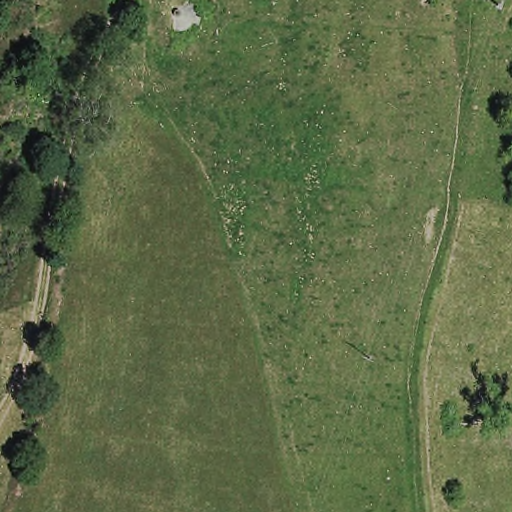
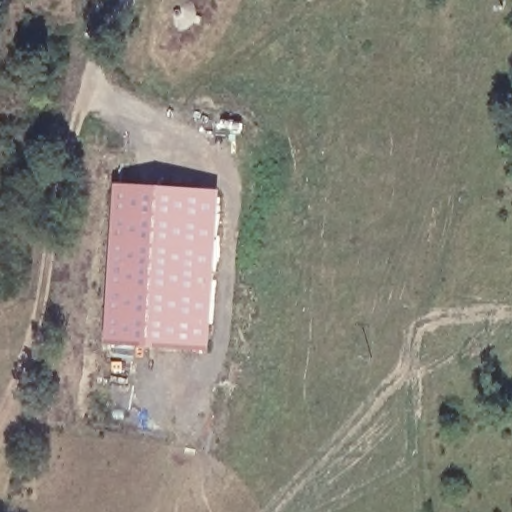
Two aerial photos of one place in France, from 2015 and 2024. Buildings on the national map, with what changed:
new [(195,24),(189,30),(180,31),(171,29),(165,23),(163,14),(166,5),(171,0),(190,0),(195,6),(198,15),(197,15),(204,18),(201,26),(195,24)]
new [(103,345),(113,185),(221,191),(211,351),(103,345)]

